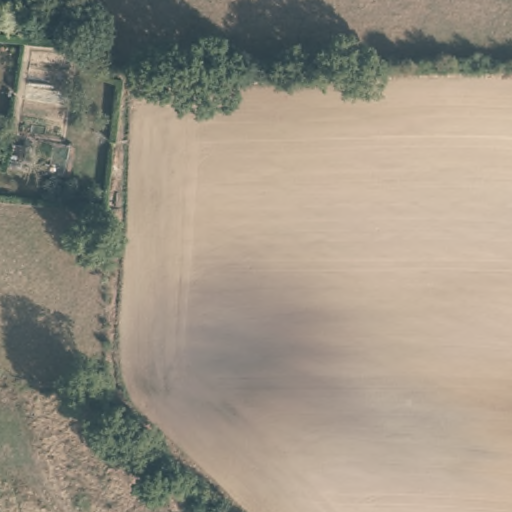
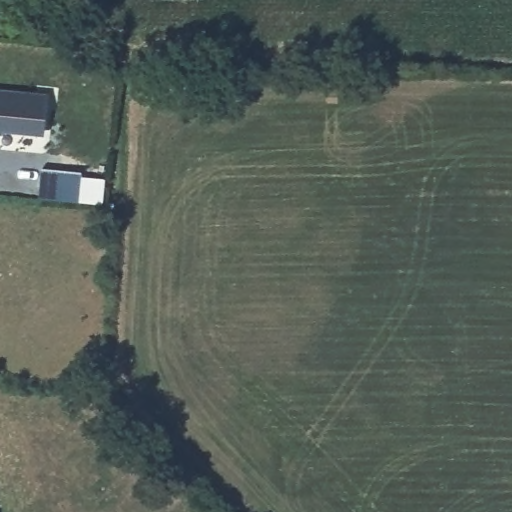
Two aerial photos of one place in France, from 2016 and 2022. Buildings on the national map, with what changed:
new [(46,136),(37,134),(36,144),(17,142),(19,134),(0,131),(0,88),(47,92),(46,136)]
new [(38,201),(40,168),(83,172),(81,202),(38,201)]

